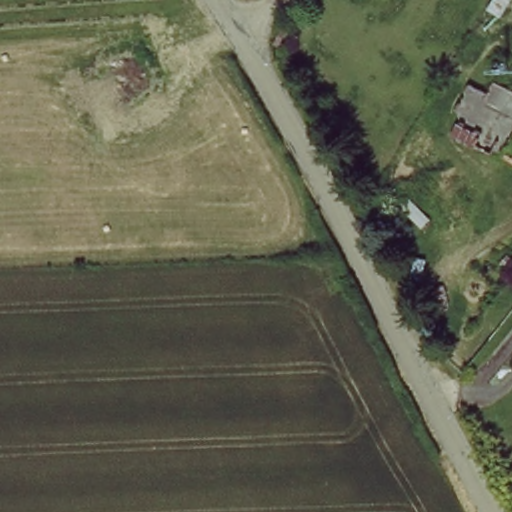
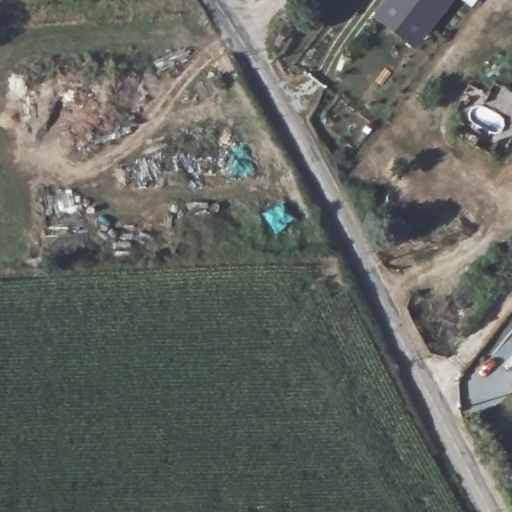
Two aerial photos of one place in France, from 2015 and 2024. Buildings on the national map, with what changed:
new [(449,0),(425,31),(413,48),(375,19),(387,3),(389,0),(449,0)]
unchanged [(489,156),(470,147),(450,136),(456,124),(452,111),(465,85),(484,94),(490,83),(512,94),(512,134),(505,148),(499,161),(489,156)]

